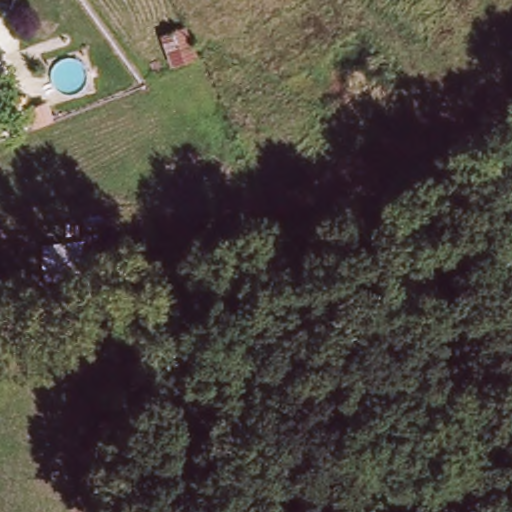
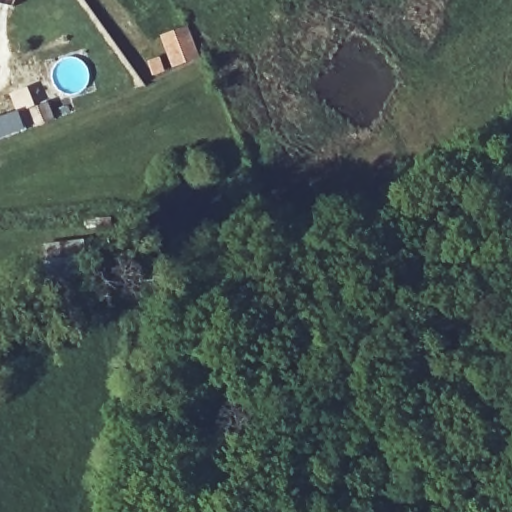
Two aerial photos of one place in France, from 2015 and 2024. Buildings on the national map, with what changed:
unchanged [(170,64),(159,36),(180,27),(191,57),(170,64)]

